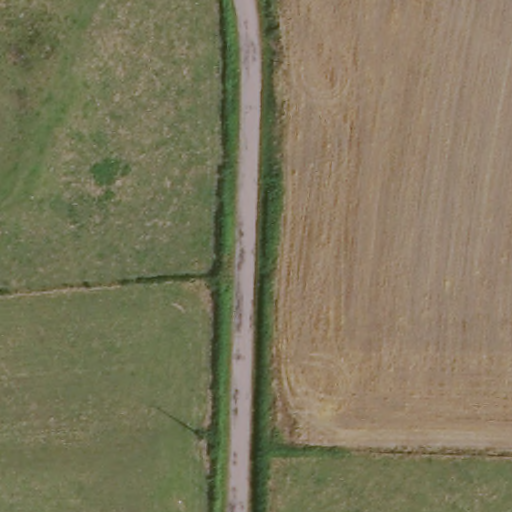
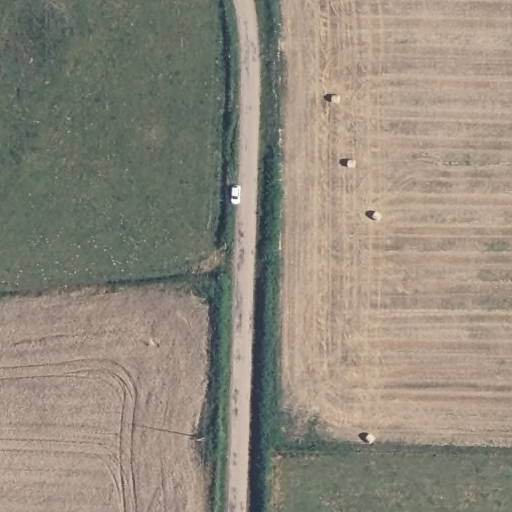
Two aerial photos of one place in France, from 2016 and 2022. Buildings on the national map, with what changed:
[]

